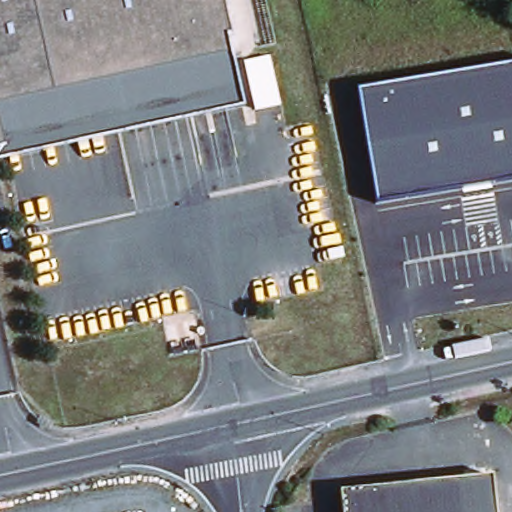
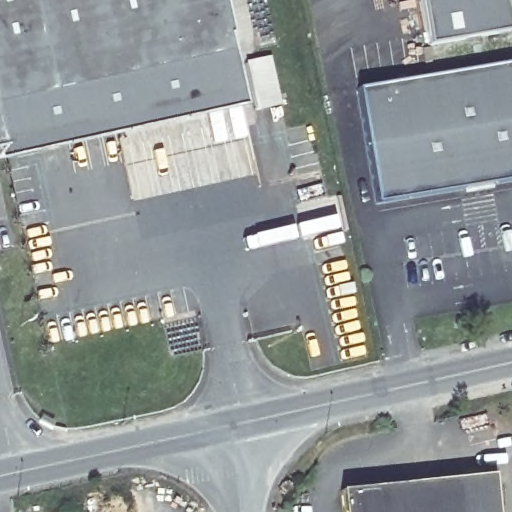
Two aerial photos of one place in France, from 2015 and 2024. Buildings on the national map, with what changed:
unchanged [(0,149),(0,0),(230,0),(242,55),(8,106),(17,145),(0,149)]
new [(507,37),(425,51),(416,0),(501,0),(507,37)]
unchanged [(290,93),(267,98),(257,52),(280,47),(290,93)]
unchanged [(250,94),(17,145),(8,106),(242,55),(250,94)]
unchanged [(358,87),(512,63),(512,179),(377,203),(358,87)]
unchanged [(496,482),(499,512),(345,512),(343,497),(496,482)]

